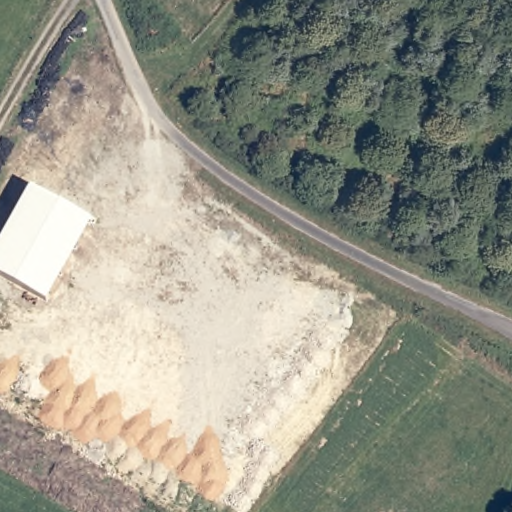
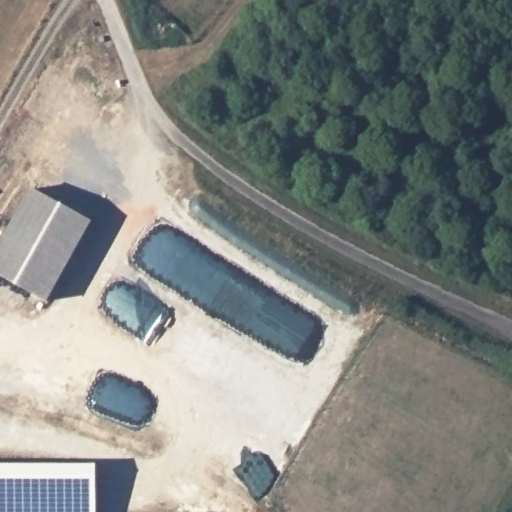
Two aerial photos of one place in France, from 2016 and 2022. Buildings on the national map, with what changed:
unchanged [(32,187),(95,221),(48,302),(0,275),(0,243),(32,187)]
new [(96,464),(96,512),(0,512),(0,464),(96,464)]

